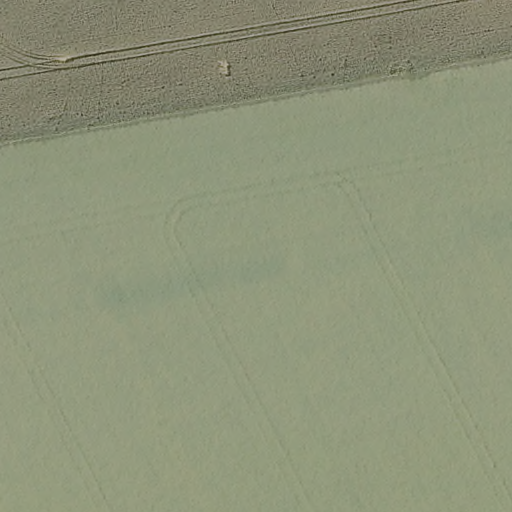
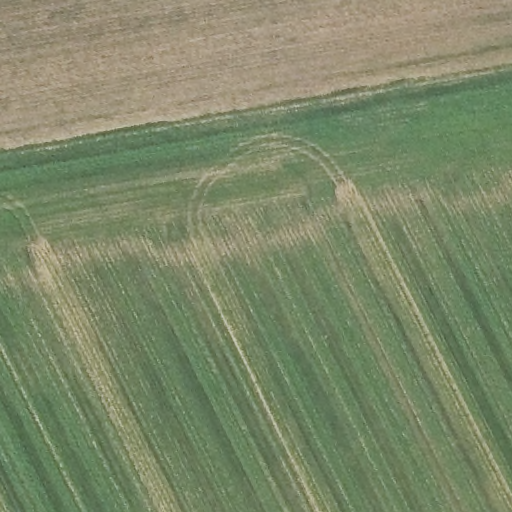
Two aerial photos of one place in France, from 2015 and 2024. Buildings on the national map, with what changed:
[]

